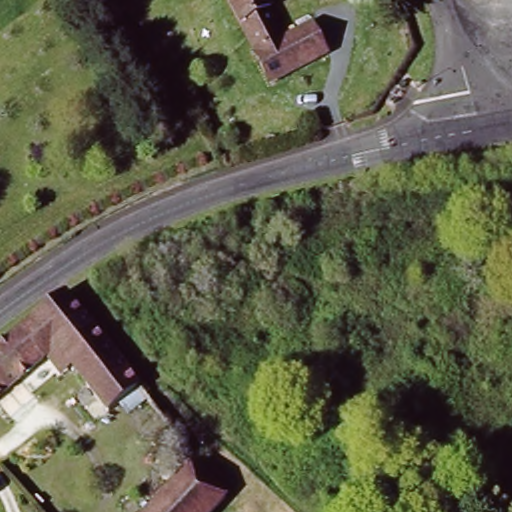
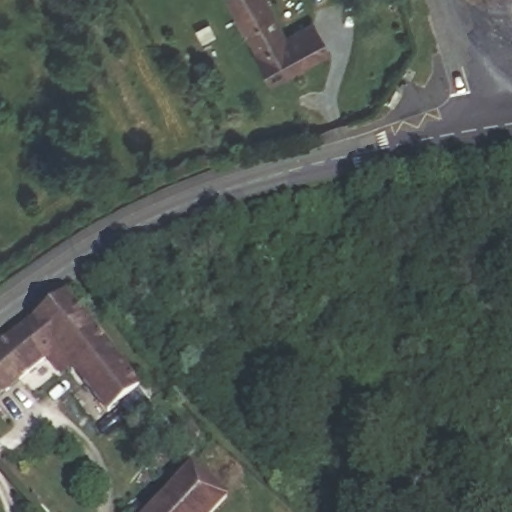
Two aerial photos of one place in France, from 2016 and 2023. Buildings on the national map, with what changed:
unchanged [(287,37),(313,27),(327,57),(281,80),(275,83),(234,0),(268,0),(287,37)]
unchanged [(70,293),(137,380),(105,408),(65,356),(0,406),(0,348),(70,293)]
unchanged [(217,504),(210,512),(144,512),(182,468),(217,504)]

